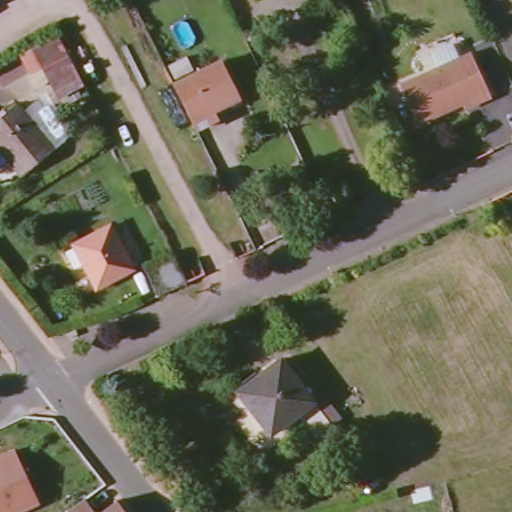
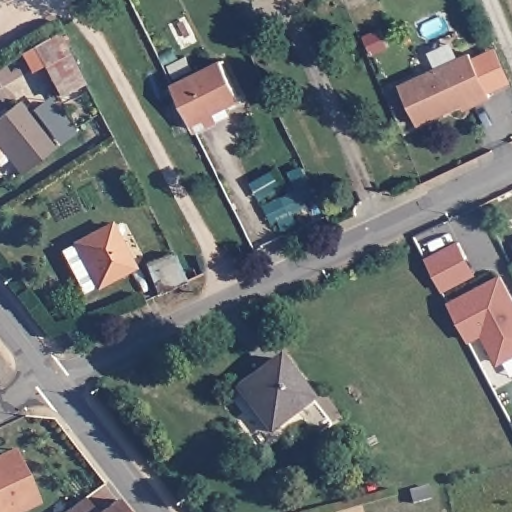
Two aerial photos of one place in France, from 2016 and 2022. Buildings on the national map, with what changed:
unchanged [(57,95),(42,65),(32,71),(20,55),(57,34),(67,51),(82,82),(57,95)]
unchanged [(417,126),(397,81),(493,41),(512,79),(512,82),(471,102),(463,106),(460,101),(417,126)]
unchanged [(221,61),(240,98),(192,122),(174,84),(221,61)]
unchanged [(53,149),(22,174),(0,147),(0,118),(17,104),(53,149)]
unchanged [(273,169),(282,188),(262,198),(253,178),(273,169)]
unchanged [(74,244),(110,225),(133,269),(97,288),(74,244)]
new [(426,257),(459,239),(477,274),(443,291),(426,257)]
unchanged [(186,282),(157,296),(145,265),(171,254),(186,282)]
new [(482,334),(470,341),(449,300),(503,273),(512,291),(512,355),(497,363),(482,334)]
unchanged [(334,406),(325,413),(327,415),(312,427),(300,412),(257,444),(233,413),(243,405),(229,385),(276,349),(310,393),(319,386),(334,406)]
new [(512,411),(512,423),(507,413),(512,411)]
unchanged [(13,449),(18,458),(37,500),(10,512),(0,512),(0,455),(13,449)]
unchanged [(58,512),(73,501),(82,512),(58,512)]
unchanged [(113,512),(92,512),(105,502),(113,512)]

